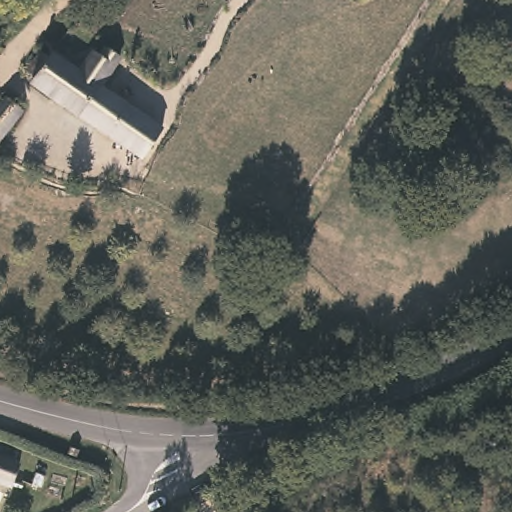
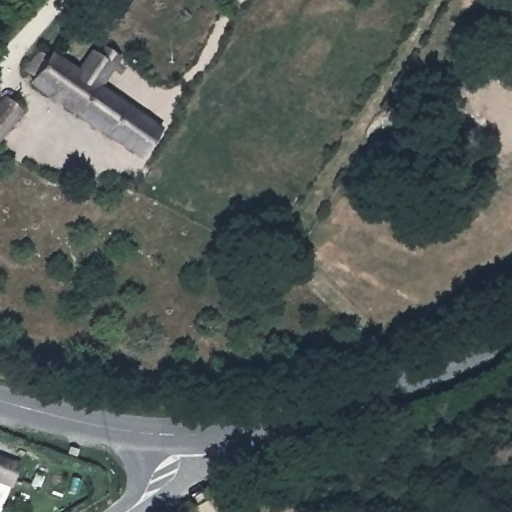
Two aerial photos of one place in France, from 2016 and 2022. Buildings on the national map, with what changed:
unchanged [(121,135),(92,115),(42,80),(34,74),(51,50),(60,56),(62,52),(98,77),(110,62),(121,71),(130,77),(121,93),(140,106),(121,135)]
unchanged [(0,144),(0,103),(4,98),(9,92),(29,106),(25,112),(0,145),(0,144)]
unchanged [(20,463),(13,484),(0,479),(0,456),(20,463)]

